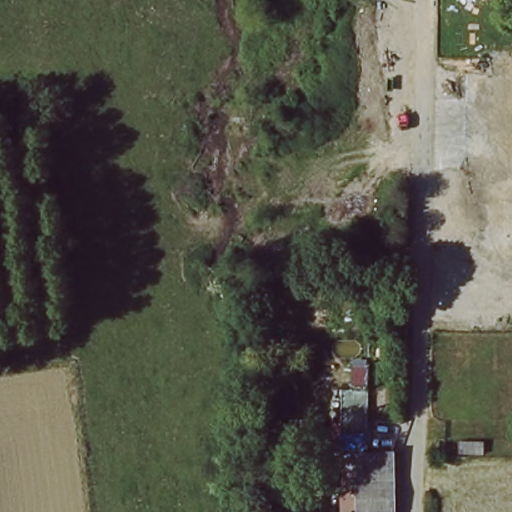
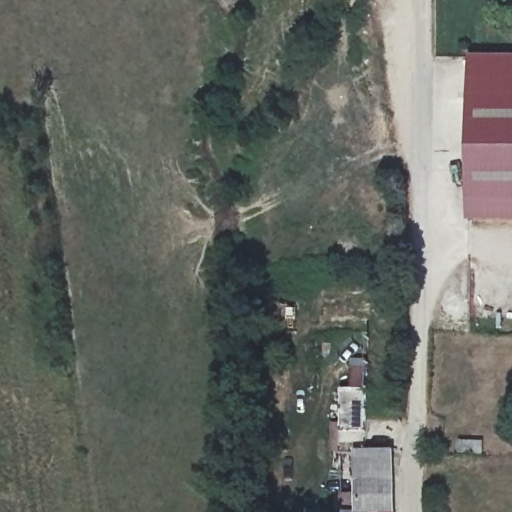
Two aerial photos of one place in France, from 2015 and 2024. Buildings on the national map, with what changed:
new [(512,99),(512,223),(468,223),(467,99),(512,99)]
unchanged [(365,430),(338,434),(338,385),(317,384),(315,354),(363,358),(365,430)]
unchanged [(371,453),(393,452),(394,512),(354,512),(356,453),(371,453)]

